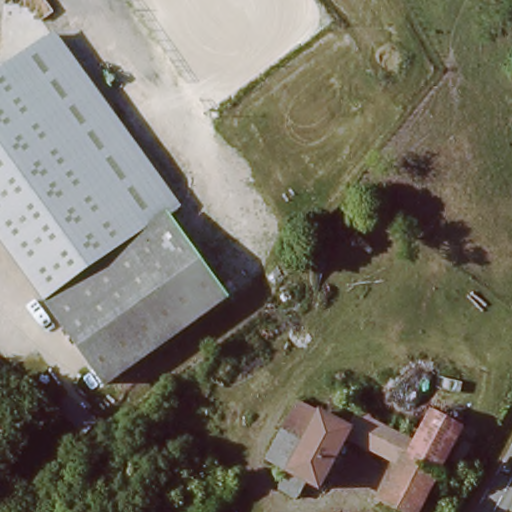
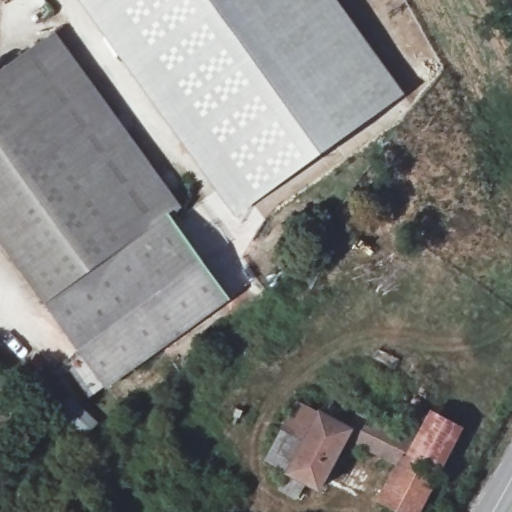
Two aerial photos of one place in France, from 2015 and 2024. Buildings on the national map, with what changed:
new [(405,94),(236,215),(81,0),(337,0),(405,94)]
unchanged [(182,206),(166,213),(123,245),(42,302),(0,244),(0,71),(55,30),(182,206)]
unchanged [(42,302),(123,245),(166,213),(231,302),(186,333),(107,391),(42,302)]
unchanged [(88,440),(58,415),(71,397),(101,423),(88,440)]
unchanged [(267,465),(281,435),(296,403),(318,413),(347,427),(356,413),(416,438),(405,459),(367,438),(361,446),(347,437),(317,490),(307,485),(296,500),(278,490),(285,475),(267,465)]
unchanged [(432,410),(461,427),(435,475),(405,459),(416,438),(432,410)]
unchanged [(405,459),(435,475),(415,512),(400,512),(381,500),(405,459)]
unchanged [(228,500),(217,512),(185,512),(211,485),(228,500)]

